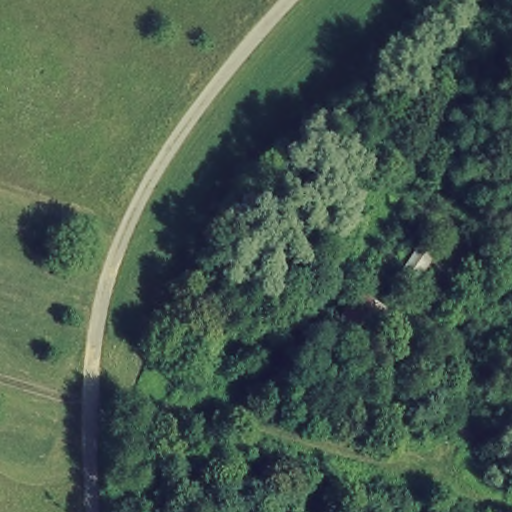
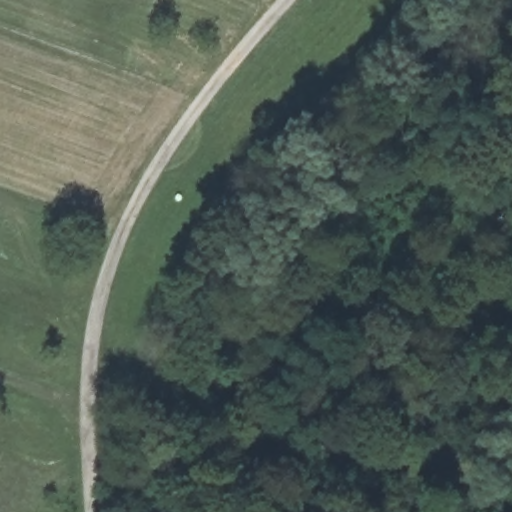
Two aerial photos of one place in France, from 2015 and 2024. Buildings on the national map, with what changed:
unchanged [(385,312),(363,347),(327,321),(350,287),(385,312)]

